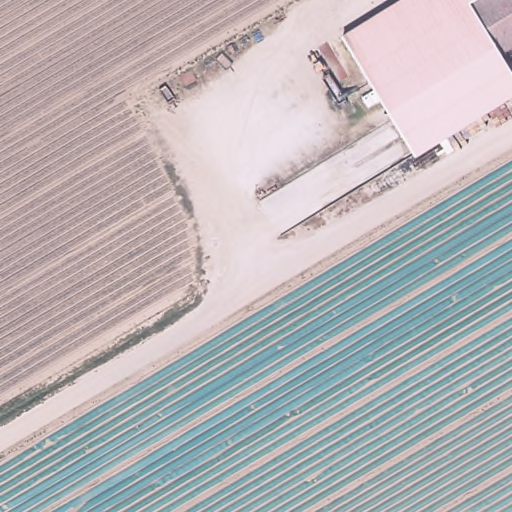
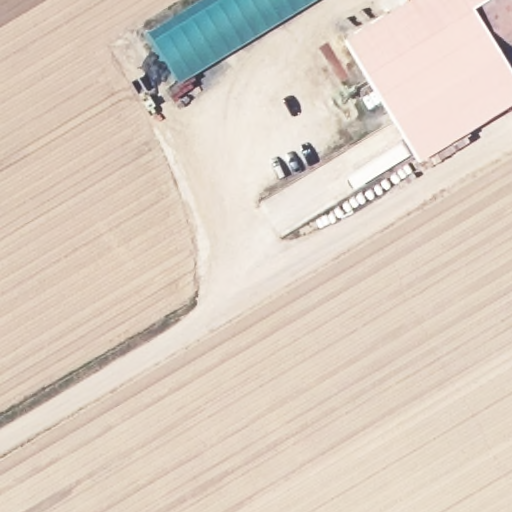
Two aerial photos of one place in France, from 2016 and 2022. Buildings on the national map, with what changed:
new [(309,0),(176,82),(149,38),(210,0),(309,0)]
unchanged [(419,0),(472,0),(356,69),(342,46),(419,0)]
unchanged [(501,63),(512,81),(512,107),(416,166),(356,69),(472,0),(512,0),(512,56),(501,63)]

